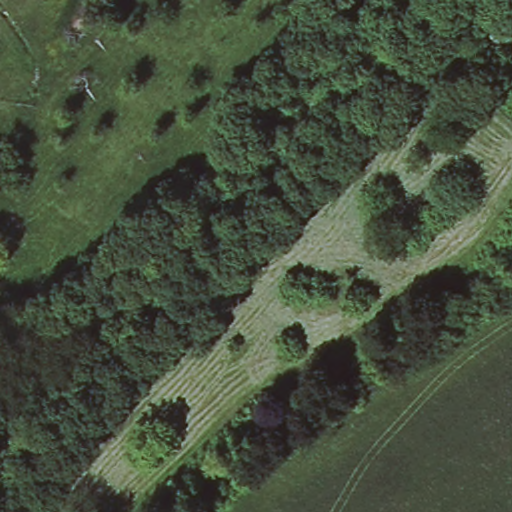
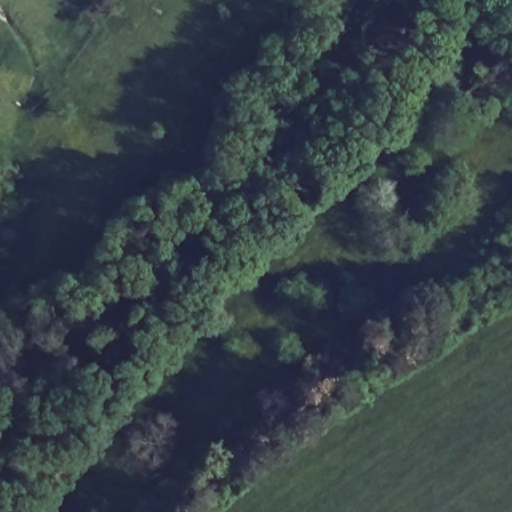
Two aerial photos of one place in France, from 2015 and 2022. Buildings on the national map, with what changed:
unchanged [(492,32),(512,17),(512,18),(512,43),(503,49),(492,32)]
unchanged [(212,280),(237,254),(248,264),(224,290),(212,280)]

